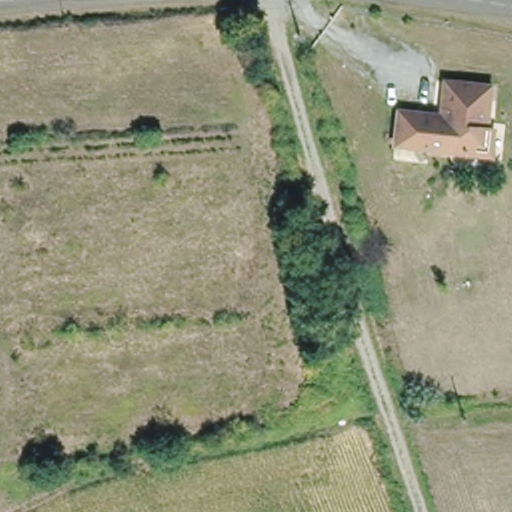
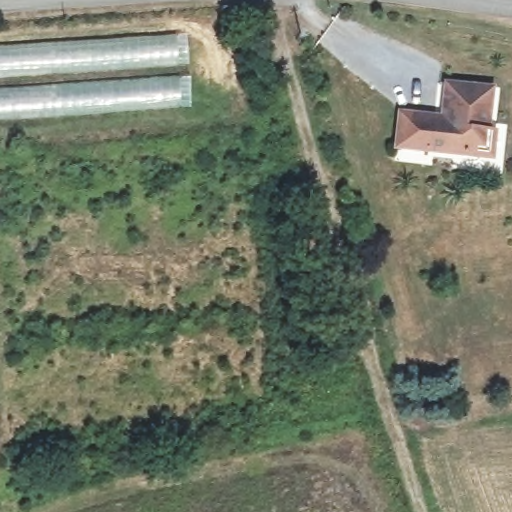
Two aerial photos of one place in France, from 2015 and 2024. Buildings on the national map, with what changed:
new [(177,64),(0,76),(0,46),(175,34),(177,64)]
new [(177,77),(180,107),(0,119),(0,89),(177,77)]
unchanged [(396,142),(400,106),(445,114),(450,83),(494,91),(488,127),(497,130),(494,157),(396,142)]

